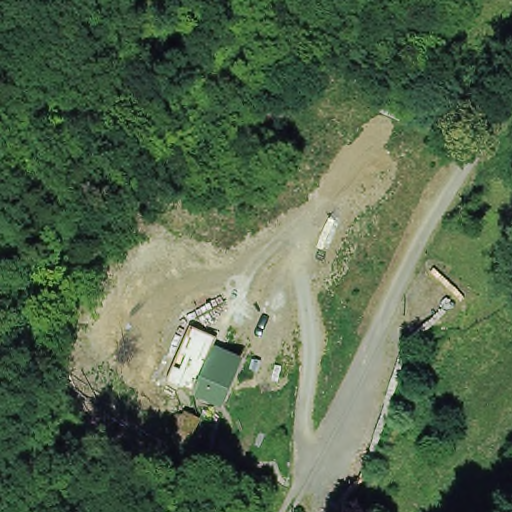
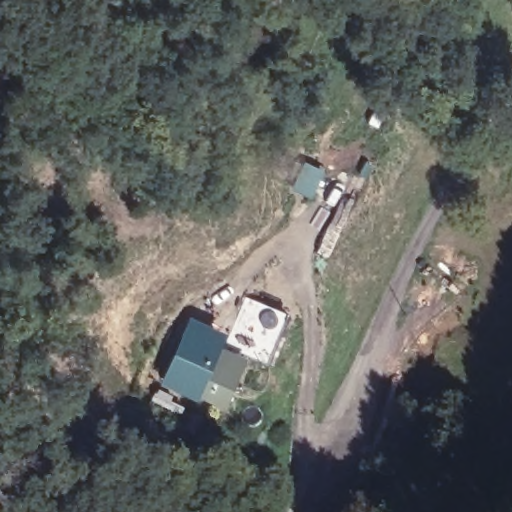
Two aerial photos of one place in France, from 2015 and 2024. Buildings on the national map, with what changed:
new [(200,390),(196,400),(161,384),(191,318),(226,334),(219,350),(213,347),(238,358),(234,367),(221,399),(200,390)]
demolished [(196,388),(209,357),(213,347),(238,358),(234,367),(221,399),(196,388)]
unchanged [(139,407),(145,395),(154,400),(148,411),(139,407)]
unchanged [(194,435),(180,427),(187,413),(201,421),(194,435)]

